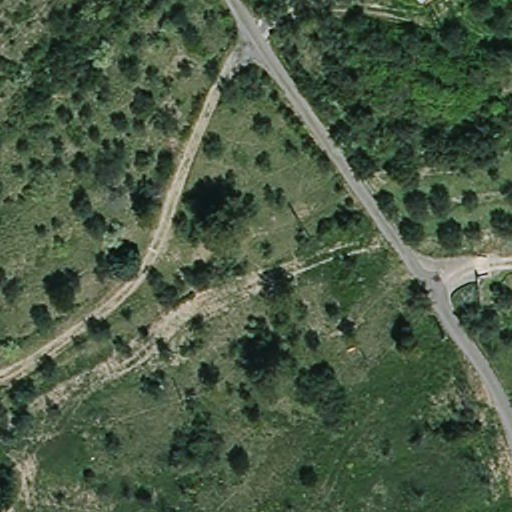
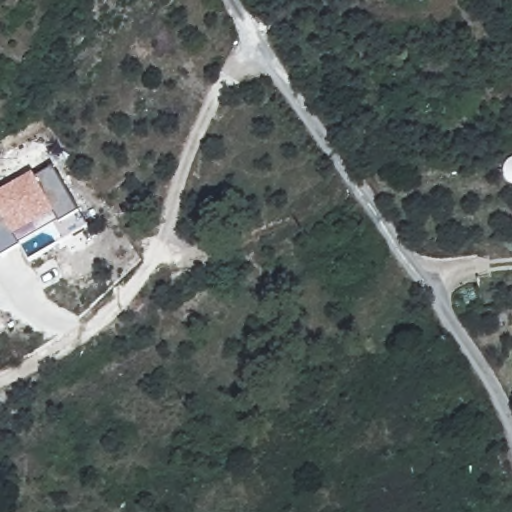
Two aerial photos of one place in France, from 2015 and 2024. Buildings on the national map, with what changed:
unchanged [(424,1),(423,0),(425,0),(424,1)]
new [(54,223),(19,243),(20,246),(2,256),(0,253),(0,189),(32,171),(35,178),(52,167),(78,212),(88,226),(64,240),(54,223)]

